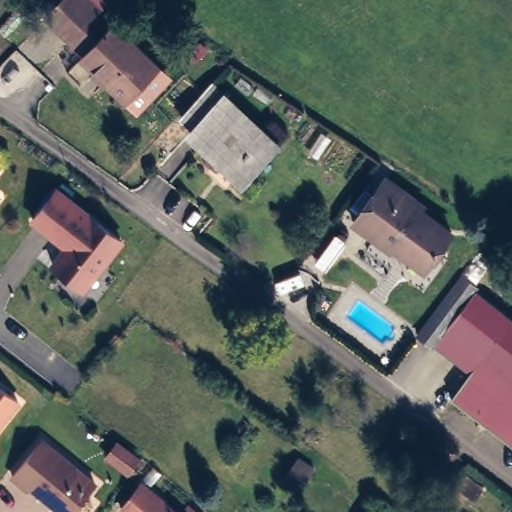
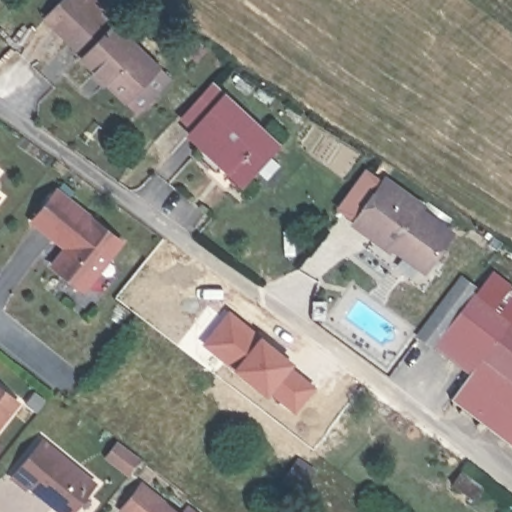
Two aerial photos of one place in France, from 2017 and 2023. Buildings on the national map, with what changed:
unchanged [(85,57),(88,55),(49,19),(66,0),(89,0),(158,64),(127,96),(85,57)]
unchanged [(207,153),(210,151),(195,136),(227,104),(233,97),(284,142),(281,154),(250,182),(234,197),(222,185),(215,192),(202,184),(222,164),(207,153)]
unchanged [(422,276),(352,222),(382,181),(450,241),(422,276)]
unchanged [(122,241),(84,289),(53,265),(65,250),(67,250),(66,245),(64,245),(33,220),(57,190),(122,241)]
unchanged [(467,375),(432,345),(435,341),(414,322),(434,299),(456,270),(480,290),(457,316),(477,293),(512,321),(512,444),(450,397),(467,375)]
new [(227,315),(258,339),(290,363),(287,367),(312,387),(294,410),(268,391),(265,395),(202,346),(222,320),(227,315)]
unchanged [(0,425),(0,387),(19,401),(0,425)]
unchanged [(72,512),(62,512),(29,485),(26,487),(12,476),(42,440),(95,483),(72,512)]
unchanged [(142,478),(183,512),(131,512),(121,504),(142,478)]

